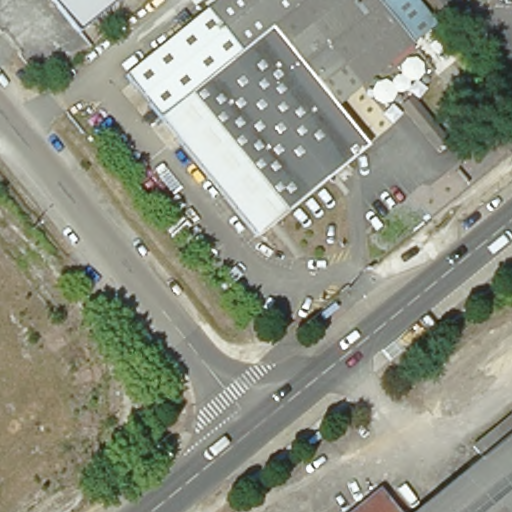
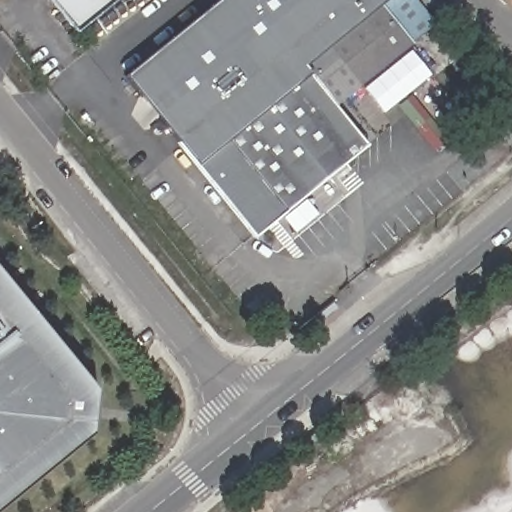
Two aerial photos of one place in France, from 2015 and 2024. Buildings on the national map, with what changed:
unchanged [(47,0),(117,0),(76,35),(47,0)]
unchanged [(211,0),(415,0),(435,23),(337,102),(368,144),(255,239),(122,74),(211,0)]
new [(412,50),(432,75),(383,113),(365,89),(412,50)]
unchanged [(502,104),(512,96),(512,116),(502,104)]
new [(92,432),(0,508),(0,271),(97,390),(92,432)]
demolished [(472,443),(512,411),(512,512),(414,512),(482,456),(472,443)]
demolished [(399,512),(351,512),(380,488),(399,512)]

